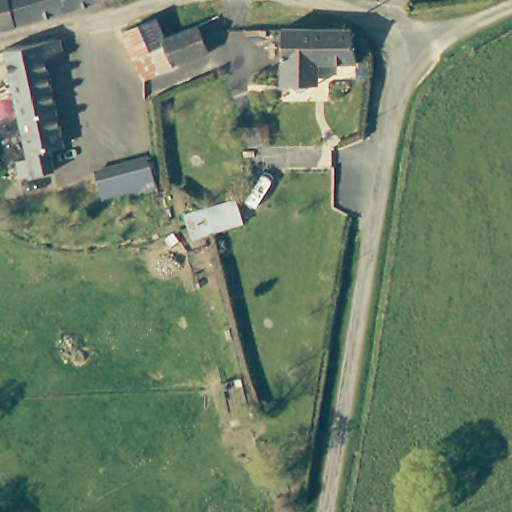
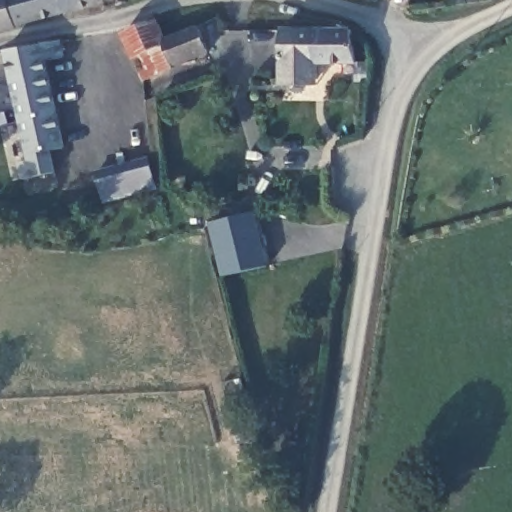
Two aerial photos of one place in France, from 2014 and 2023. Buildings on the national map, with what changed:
unchanged [(0,31),(0,0),(126,0),(116,2),(0,31)]
unchanged [(165,35),(187,27),(195,24),(207,52),(138,78),(117,33),(157,17),(165,35)]
unchanged [(344,40),(349,72),(318,72),(317,89),(280,89),(281,38),(338,38),(344,40)]
unchanged [(19,166),(32,163),(7,49),(62,41),(64,55),(48,60),(67,147),(55,149),(57,168),(58,174),(20,180),(20,177),(19,166)]
unchanged [(95,175),(147,157),(157,184),(122,197),(105,203),(102,195),(95,175)]
new [(268,265),(222,275),(208,222),(258,211),(268,265)]

